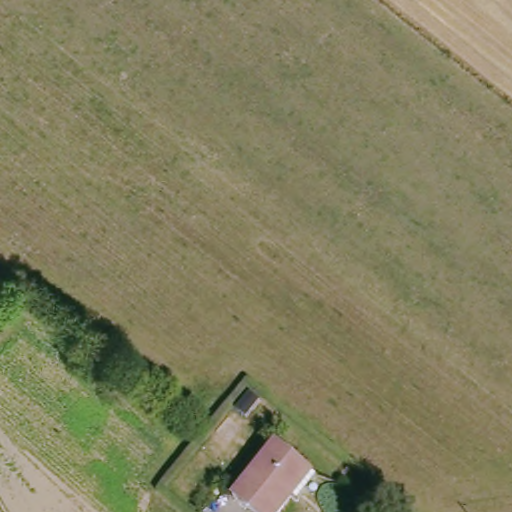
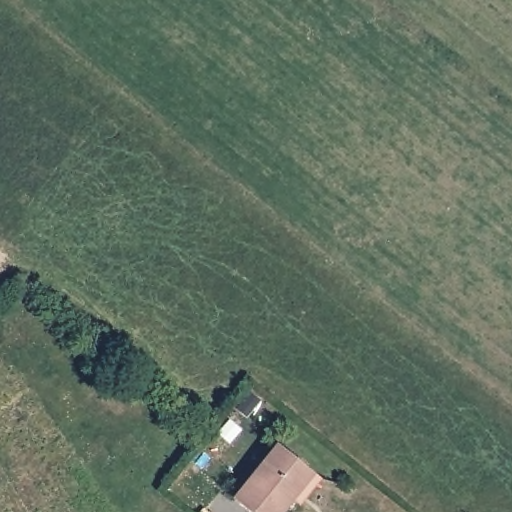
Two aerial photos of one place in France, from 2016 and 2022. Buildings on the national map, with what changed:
unchanged [(301,499),(293,494),(288,501),(254,474),(275,447),(305,470),(316,479),(301,499)]
unchanged [(280,512),(247,512),(233,501),(254,474),(288,501),(280,512)]

